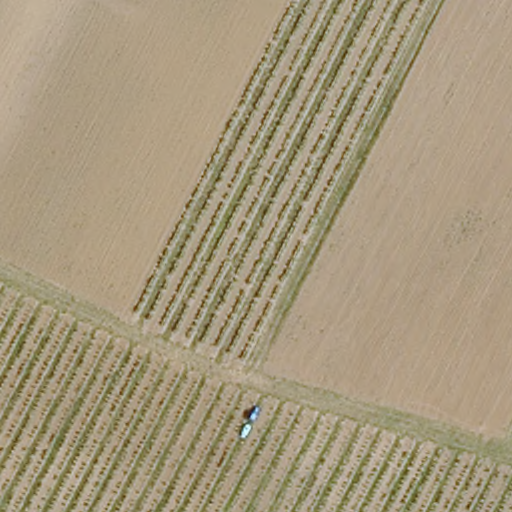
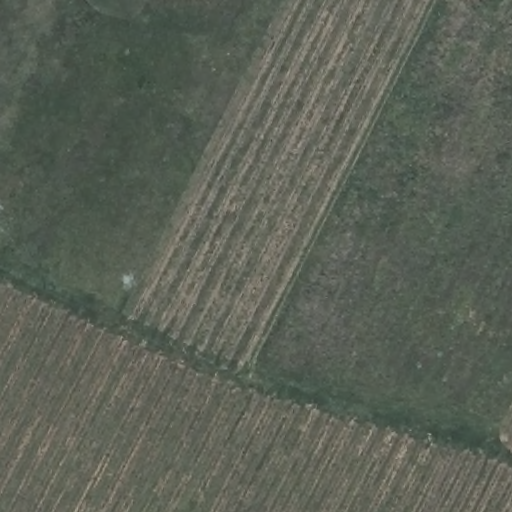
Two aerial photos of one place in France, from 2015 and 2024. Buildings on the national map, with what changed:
[]

